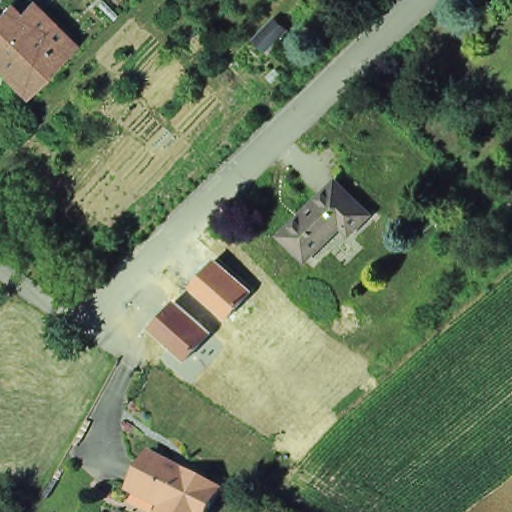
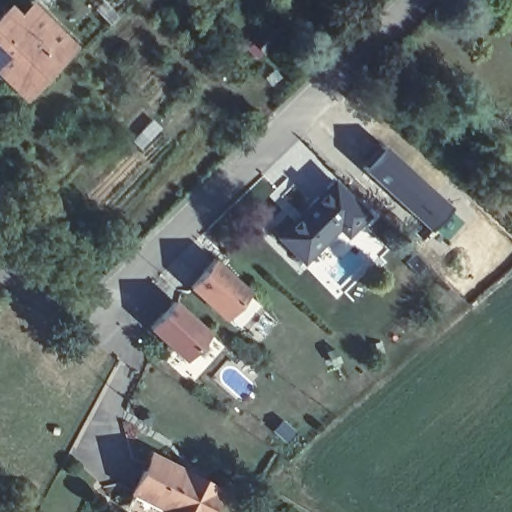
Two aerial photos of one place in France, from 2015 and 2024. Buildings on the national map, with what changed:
unchanged [(0,84),(0,25),(4,21),(15,31),(29,16),(40,28),(67,55),(20,105),(0,84)]
new [(369,176),(377,165),(372,161),(386,146),(453,207),(430,232),(369,176)]
unchanged [(365,213),(345,231),(337,224),(300,260),(278,237),(332,181),(365,213)]
unchanged [(188,288),(215,260),(250,292),(225,321),(188,288)]
unchanged [(149,327),(175,301),(210,334),(185,361),(149,327)]
unchanged [(151,454),(220,489),(209,512),(141,473),(151,454)]
unchanged [(209,512),(162,512),(165,507),(132,491),(141,473),(209,512)]

